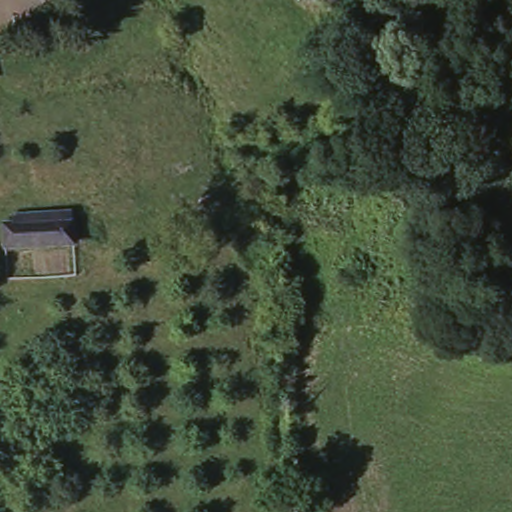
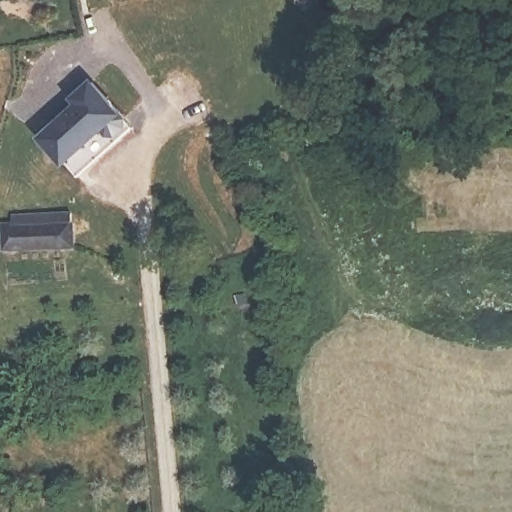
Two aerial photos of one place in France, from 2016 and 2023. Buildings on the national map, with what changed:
unchanged [(315,7),(292,9),(291,0),(315,0),(315,7)]
new [(92,79),(119,118),(63,159),(35,120),(92,79)]
unchanged [(13,230),(31,228),(30,217),(77,213),(80,245),(15,253),(13,230)]

